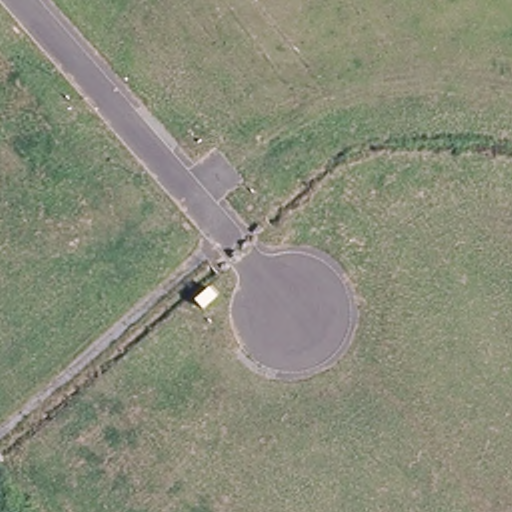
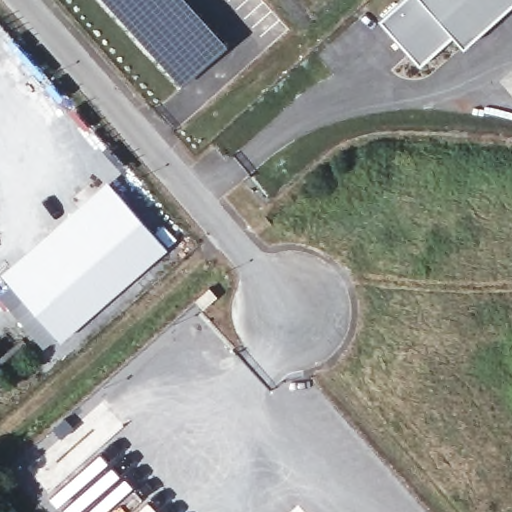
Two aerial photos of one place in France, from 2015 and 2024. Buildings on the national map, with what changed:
new [(185,82),(111,0),(194,0),(231,40),(185,82)]
new [(453,32),(421,62),(380,18),(400,0),(512,0),(512,5),(465,47),(453,32)]
new [(4,271),(109,180),(167,247),(65,338),(61,336),(49,346),(19,312),(31,301),(4,271)]

